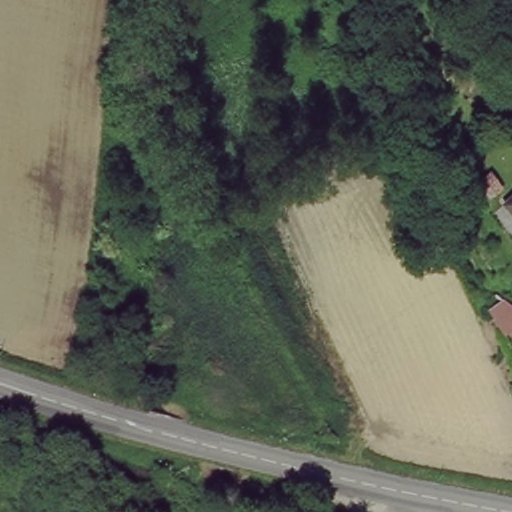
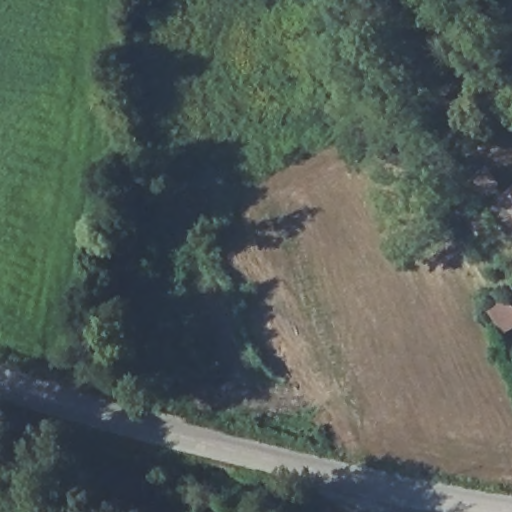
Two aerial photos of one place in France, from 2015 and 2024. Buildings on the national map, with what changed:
unchanged [(512,188),(512,215),(500,200),(512,188)]

